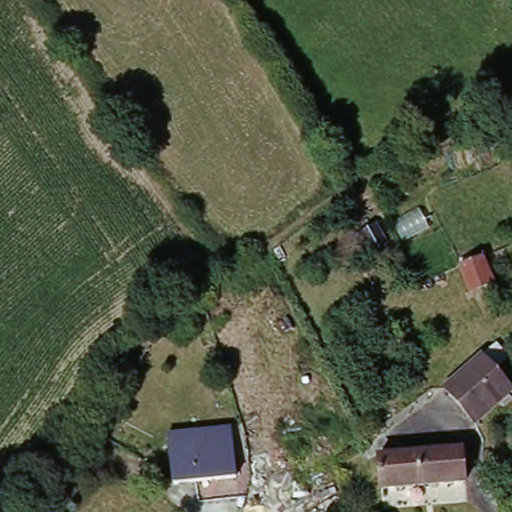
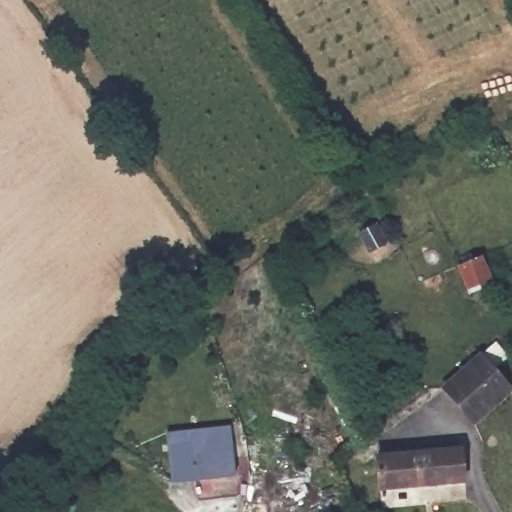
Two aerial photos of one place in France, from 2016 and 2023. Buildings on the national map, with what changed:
unchanged [(371,225),(382,239),(371,247),(360,234),(371,225)]
unchanged [(486,256),(501,292),(479,300),(465,264),(486,256)]
unchanged [(512,385),(512,393),(476,428),(444,394),(484,356),(512,385)]
unchanged [(177,487),(176,483),(174,435),(194,434),(237,431),(239,447),(240,484),(180,488),(177,487)]
unchanged [(462,462),(466,495),(384,503),(381,469),(462,462)]

